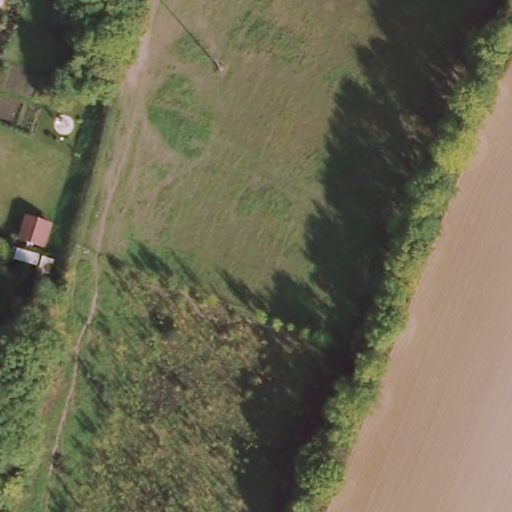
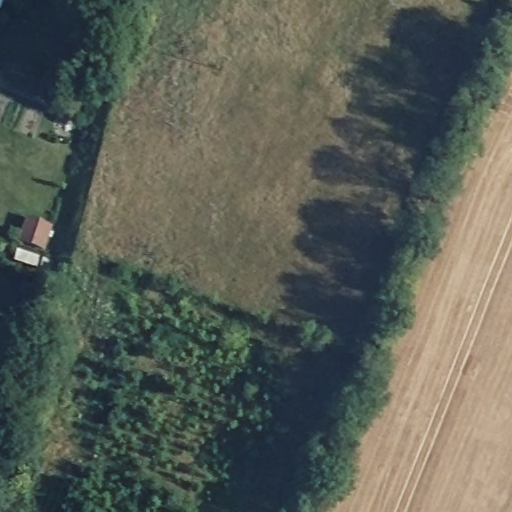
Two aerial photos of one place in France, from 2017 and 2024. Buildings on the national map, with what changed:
unchanged [(30,207),(53,213),(46,236),(24,229),(30,207)]

